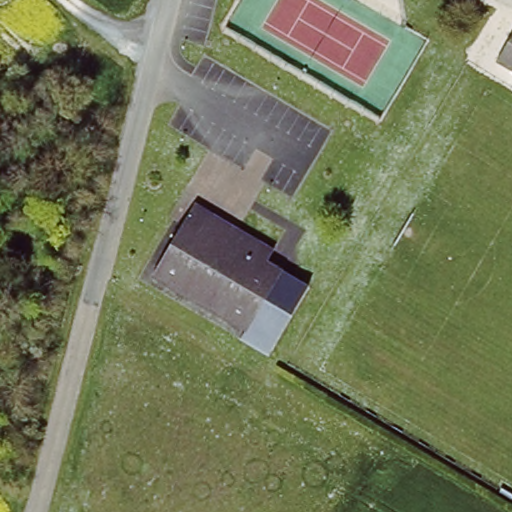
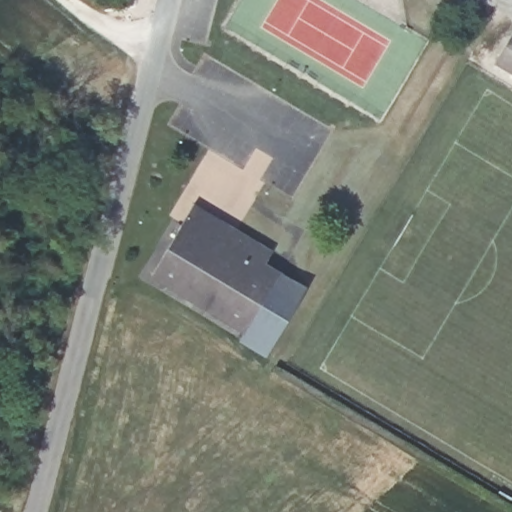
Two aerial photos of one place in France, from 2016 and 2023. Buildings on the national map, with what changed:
unchanged [(500,58),(512,37),(512,66),(500,58)]
unchanged [(199,202),(280,249),(273,260),(309,281),(273,343),(157,273),(199,202)]

